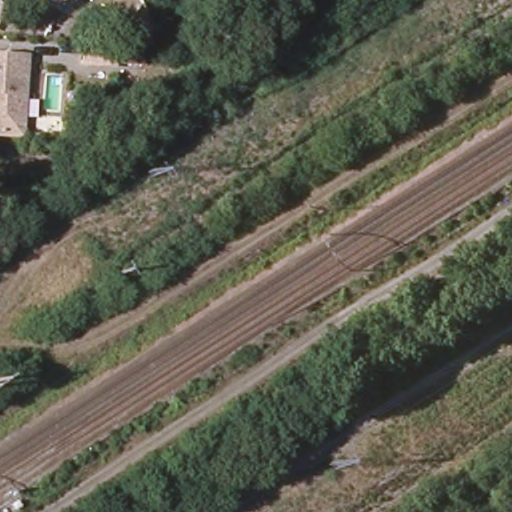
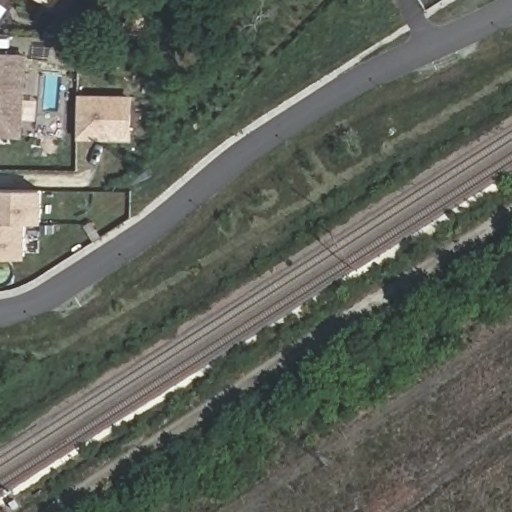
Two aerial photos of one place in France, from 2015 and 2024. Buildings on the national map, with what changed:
unchanged [(60,6),(47,0),(64,0),(60,6)]
new [(92,43),(119,45),(118,63),(91,61),(92,43)]
unchanged [(28,56),(24,134),(0,133),(0,55),(28,56)]
new [(78,95),(134,96),(133,142),(78,140),(78,95)]
new [(37,190),(36,224),(20,224),(19,256),(0,256),(0,190),(37,190)]

